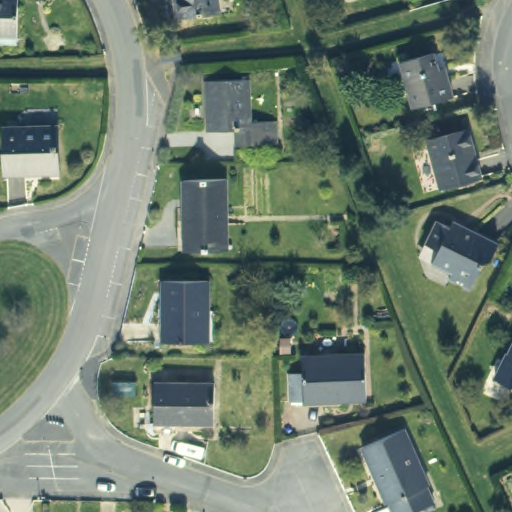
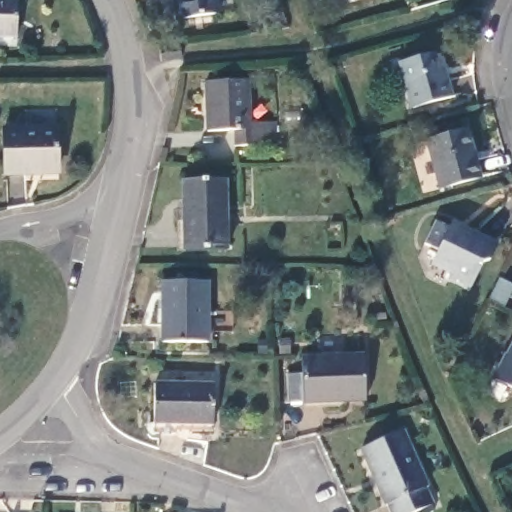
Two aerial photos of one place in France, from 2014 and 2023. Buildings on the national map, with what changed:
unchanged [(0,40),(0,0),(20,0),(20,40),(0,40)]
unchanged [(181,19),(178,0),(216,0),(219,13),(181,19)]
unchanged [(435,50),(442,75),(446,74),(452,95),(414,105),(401,60),(435,50)]
unchanged [(273,80),(273,128),(289,129),(290,143),(256,144),(255,128),(230,128),(230,81),(273,80)]
unchanged [(56,126),(57,166),(26,167),(26,175),(5,176),(0,131),(56,126)]
unchanged [(468,128),(480,174),(440,186),(428,140),(468,128)]
unchanged [(224,179),(224,247),(185,247),(184,179),(224,179)]
unchanged [(498,245),(490,264),(483,260),(467,291),(446,280),(450,273),(431,264),(438,251),(425,244),(435,223),(447,229),(452,223),(498,245)]
unchanged [(205,283),(206,343),(160,342),(160,283),(205,283)]
unchanged [(512,346),(512,390),(495,383),(512,346)]
unchanged [(290,376),(306,376),(306,359),(364,359),(365,401),(305,402),(289,402),(290,376)]
unchanged [(212,384),(213,423),(179,423),(178,436),(152,435),(152,383),(212,384)]
unchanged [(403,431),(427,483),(423,485),(432,506),(421,512),(397,512),(395,508),(386,507),(361,450),(403,431)]

